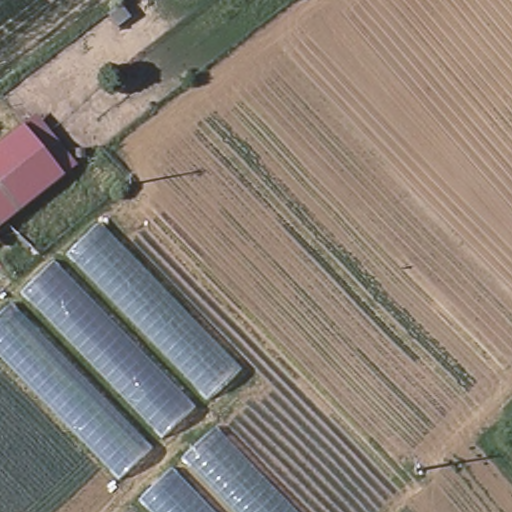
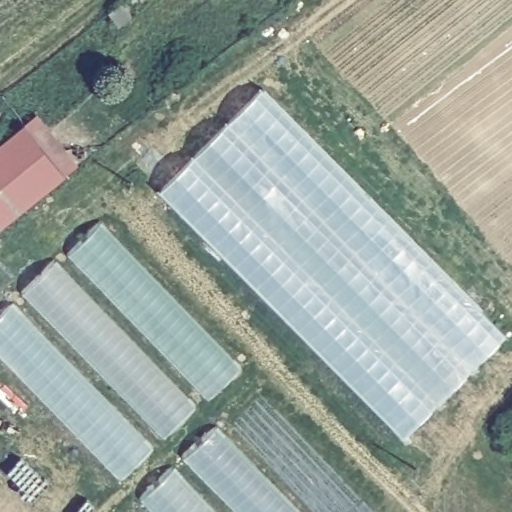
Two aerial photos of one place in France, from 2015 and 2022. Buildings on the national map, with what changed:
unchanged [(125,2),(112,12),(102,0),(123,0),(125,2)]
new [(265,90),(508,340),(408,445),(160,195),(265,90)]
unchanged [(30,124),(41,115),(80,163),(70,171),(71,174),(0,233),(0,149),(30,124)]
unchanged [(242,368),(207,404),(66,256),(102,223),(242,368)]
unchanged [(196,406),(162,439),(20,293),(56,260),(196,406)]
unchanged [(153,447),(120,482),(0,359),(0,316),(13,303),(153,447)]
unchanged [(206,421),(296,512),(232,512),(173,454),(206,421)]
unchanged [(148,512),(138,502),(173,468),(216,512),(148,512)]

